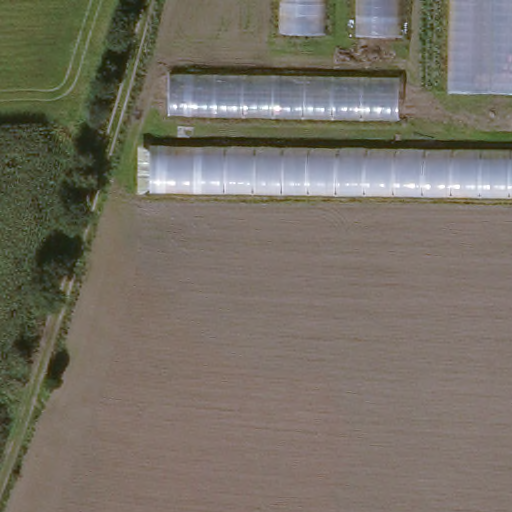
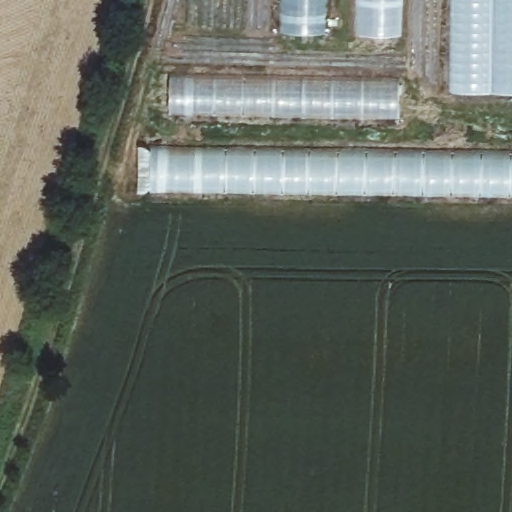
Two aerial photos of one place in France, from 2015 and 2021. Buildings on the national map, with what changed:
unchanged [(272,33),(273,0),(322,0),(321,37),(272,33)]
unchanged [(353,36),(354,0),(401,0),(400,36),(353,36)]
unchanged [(512,0),(512,95),(445,89),(447,0),(512,0)]
unchanged [(400,118),(170,115),(170,75),(400,77),(400,118)]
unchanged [(146,195),(148,147),(512,152),(512,200),(146,195)]

